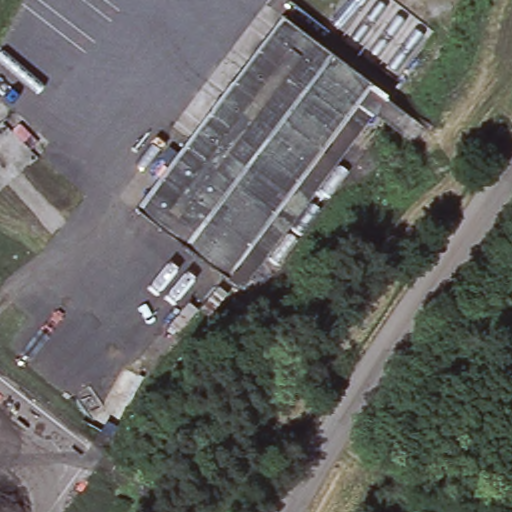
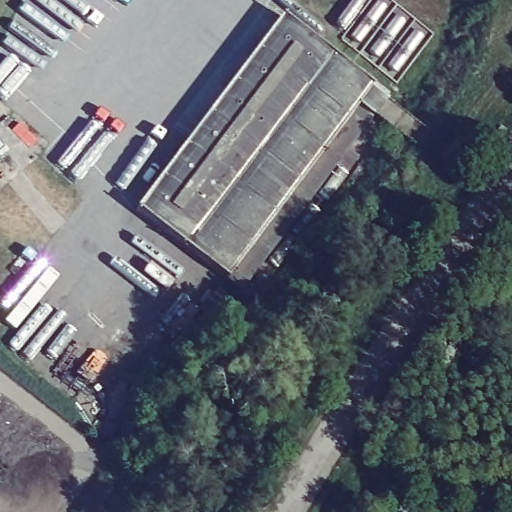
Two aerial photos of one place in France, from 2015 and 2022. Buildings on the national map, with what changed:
unchanged [(283,14),(390,94),(243,288),(136,207),(283,14)]
unchanged [(501,126),(493,137),(487,133),(495,123),(501,126)]

